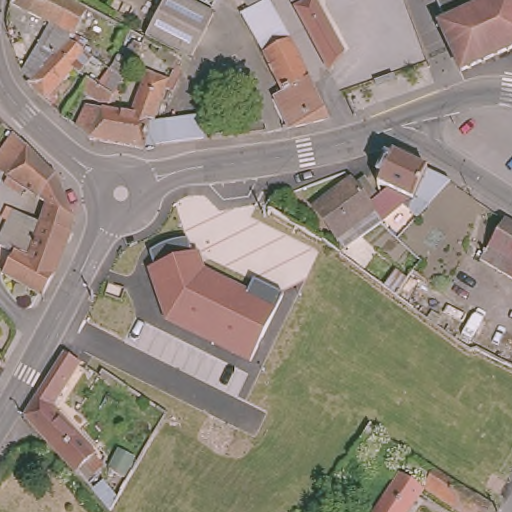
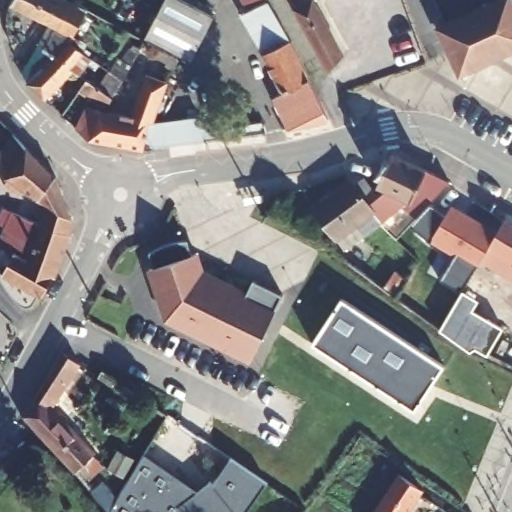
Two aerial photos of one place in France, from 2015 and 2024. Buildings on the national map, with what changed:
unchanged [(71,70),(45,102),(26,83),(30,80),(24,73),(45,23),(10,3),(11,0),(79,0),(82,2),(69,36),(63,42),(91,59),(78,75),(71,70)]
unchanged [(151,42),(143,37),(159,0),(176,0),(209,15),(187,62),(178,58),(150,44),(151,42)]
unchanged [(332,115),(291,122),(276,94),(284,90),(246,15),(255,11),(249,0),(272,0),(332,115)]
unchanged [(312,1),(340,56),(325,71),(317,58),(282,0),(315,0),(312,1)]
unchanged [(502,4),(505,3),(512,20),(512,55),(455,83),(435,36),(440,34),(426,2),(429,0),(500,0),(502,4)]
unchanged [(141,145),(83,134),(72,124),(78,116),(85,120),(91,110),(127,118),(146,76),(168,85),(154,117),(141,145)]
unchanged [(110,103),(100,102),(82,92),(90,81),(115,94),(110,103)]
unchanged [(196,109),(201,134),(141,145),(154,117),(196,109)]
unchanged [(57,177),(72,218),(45,297),(0,273),(13,249),(0,245),(0,232),(10,206),(20,188),(0,172),(0,142),(6,124),(57,177)]
unchanged [(378,193),(379,179),(378,179),(381,172),(378,169),(379,165),(380,164),(379,163),(383,151),(391,147),(398,150),(426,163),(427,164),(450,176),(424,205),(421,197),(413,194),(385,221),(379,225),(372,217),(368,211),(371,208),(367,202),(376,194),(378,193)]
unchanged [(367,202),(371,208),(368,211),(372,217),(379,225),(377,226),(347,247),(315,206),(349,179),(351,182),(363,175),(376,194),(367,202)]
new [(447,215),(454,204),(496,227),(476,264),(478,265),(464,290),(480,299),(473,310),(503,327),(487,355),(473,348),(468,351),(440,330),(461,294),(440,280),(455,254),(432,242),(412,224),(431,204),(447,215)]
unchanged [(512,286),(476,264),(498,223),(512,231),(512,286)]
unchanged [(162,246),(175,242),(189,240),(192,255),(199,253),(204,270),(248,292),(253,281),(282,295),(249,365),(165,323),(147,270),(154,267),(150,253),(162,246)]
new [(441,373),(410,411),(316,349),(342,308),(441,373)]
unchanged [(51,406),(91,453),(74,471),(22,406),(61,353),(80,363),(51,406)]
demolished [(512,486),(503,499),(470,476),(485,452),(512,470),(512,486)]
demolished [(458,512),(423,491),(428,483),(407,470),(415,458),(496,512),(458,512)]
new [(182,512),(118,512),(113,509),(146,459),(200,494),(208,482),(213,485),(230,459),(266,482),(247,512),(186,512),(183,510),(182,512)]
unchanged [(391,494),(400,481),(420,495),(408,512),(378,512),(380,510),(391,494)]

